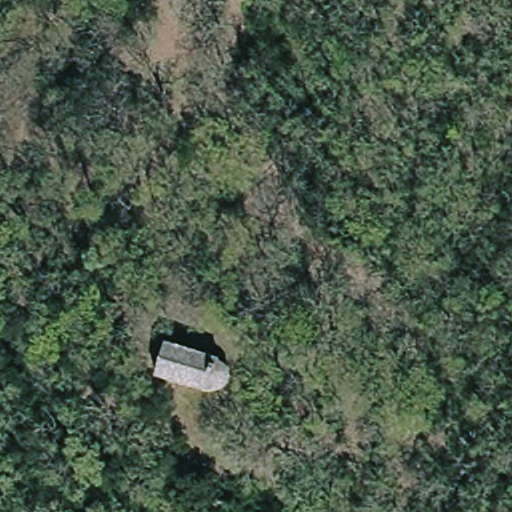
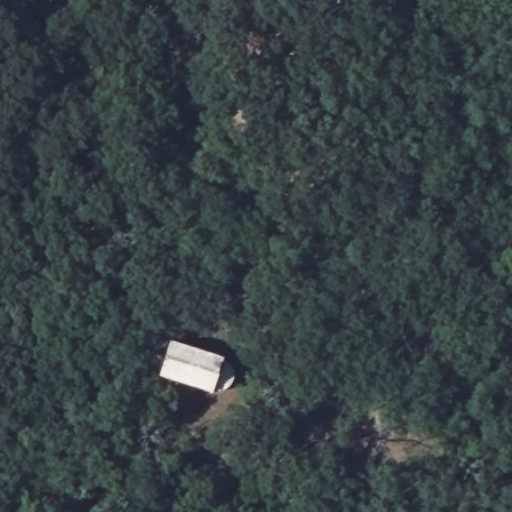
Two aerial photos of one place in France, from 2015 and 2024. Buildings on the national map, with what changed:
unchanged [(215,394),(159,379),(169,342),(224,358),(215,394)]

